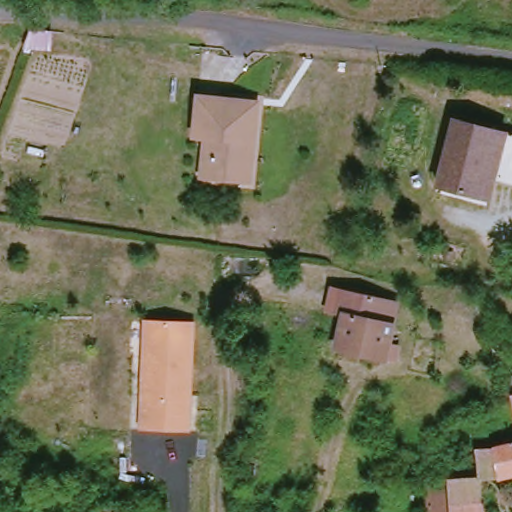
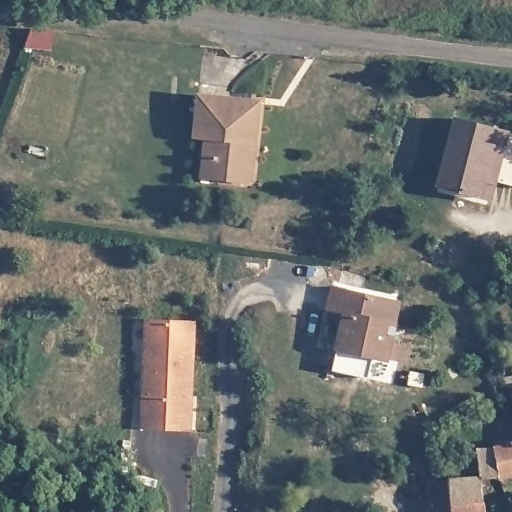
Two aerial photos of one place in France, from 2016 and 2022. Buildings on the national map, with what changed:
unchanged [(47,14),(39,37),(22,31),(28,14),(47,14)]
unchanged [(210,131),(198,130),(202,89),(260,95),(252,178),(214,172),(205,171),(210,131)]
unchanged [(508,125),(503,145),(491,189),(480,186),(441,175),(460,111),(508,125)]
unchanged [(349,283),(402,295),(395,337),(405,339),(401,357),(390,355),(333,343),(341,306),(326,303),(332,277),(349,283)]
unchanged [(196,322),(193,428),(145,425),(148,318),(196,322)]
unchanged [(512,375),(512,389),(508,375),(512,375)]
unchanged [(512,436),(512,477),(510,477),(501,438),(512,436)]
unchanged [(488,512),(458,512),(455,471),(485,470),(476,443),(501,438),(510,477),(485,479),(488,512)]
unchanged [(455,471),(458,512),(437,512),(436,473),(455,471)]

